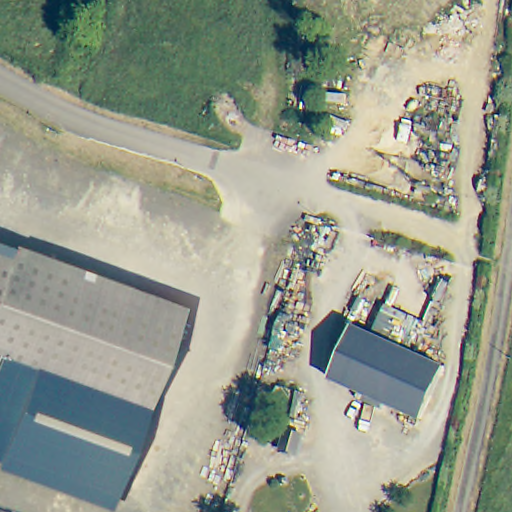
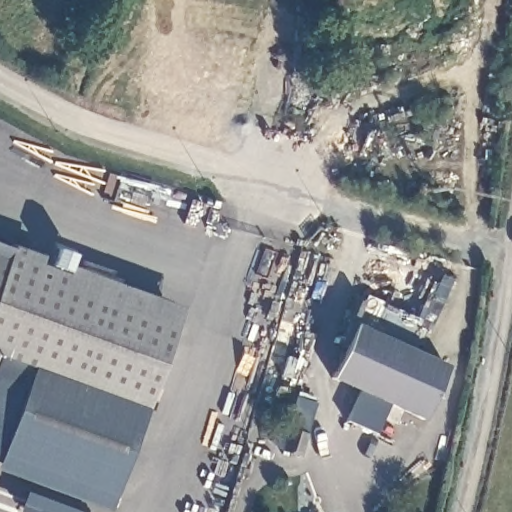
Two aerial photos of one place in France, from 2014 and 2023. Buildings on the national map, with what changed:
unchanged [(0,258),(7,261),(0,280),(0,258)]
unchanged [(64,281),(32,368),(6,359),(0,357),(0,280),(7,261),(32,269),(64,281)]
unchanged [(177,322),(146,409),(32,368),(64,281),(177,322)]
unchanged [(422,419),(330,378),(353,325),(446,367),(422,419)]
unchanged [(146,409),(114,496),(2,455),(32,368),(146,409)]

